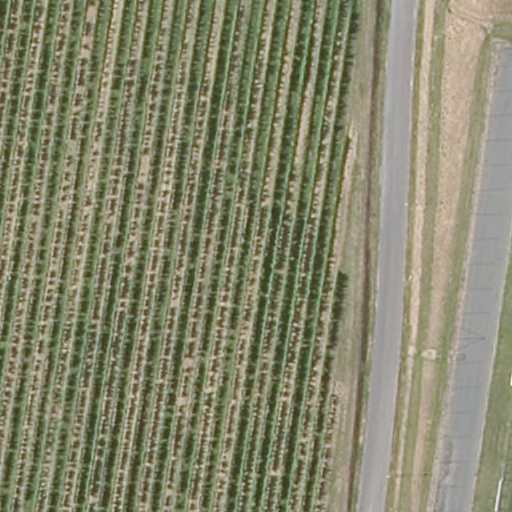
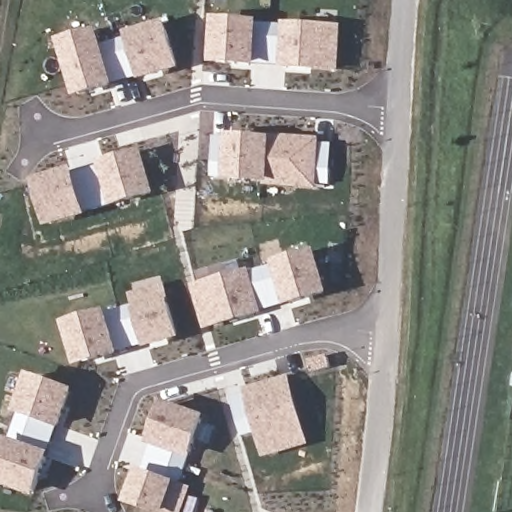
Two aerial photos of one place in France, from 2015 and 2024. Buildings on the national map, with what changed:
new [(215,18),(260,21),(259,24),(282,25),(282,22),(342,27),(339,73),(279,69),(279,66),(256,64),(256,67),(211,64),(215,18)]
new [(100,30),(104,42),(127,36),(127,33),(168,22),(181,70),(141,81),(140,75),(115,83),(115,87),(75,98),(60,40),(100,30)]
new [(226,137),(226,133),(273,137),(276,134),(320,138),(320,143),(330,144),(327,184),(315,184),(315,189),(262,185),(259,183),(222,180),(222,177),(210,176),(211,137),(226,137)]
new [(74,167),(75,170),(100,163),(144,150),(155,194),(110,207),(110,203),(85,209),(86,216),(45,228),(34,179),(74,167)]
new [(250,269),(251,271),(273,263),(318,250),(330,294),(286,306),(285,303),(261,312),(262,314),(205,331),(192,287),(250,269)]
new [(107,311),(109,312),(133,306),(130,294),(165,283),(167,300),(170,300),(181,339),(146,349),(145,344),(119,350),(120,354),(76,368),(64,324),(107,311)]
new [(15,413),(29,373),(75,389),(60,430),(51,427),(44,451),(52,454),(35,497),(0,485),(0,463),(7,439),(15,413)]
new [(288,375),(308,445),(262,458),(257,433),(240,437),(229,398),(243,394),(242,389),(288,375)]
new [(140,468),(149,444),(165,402),(207,416),(191,461),(185,458),(176,482),(190,487),(180,512),(146,512),(122,504),(137,468),(140,468)]

